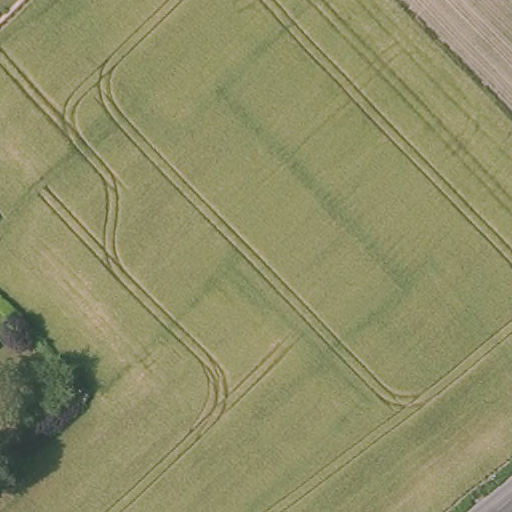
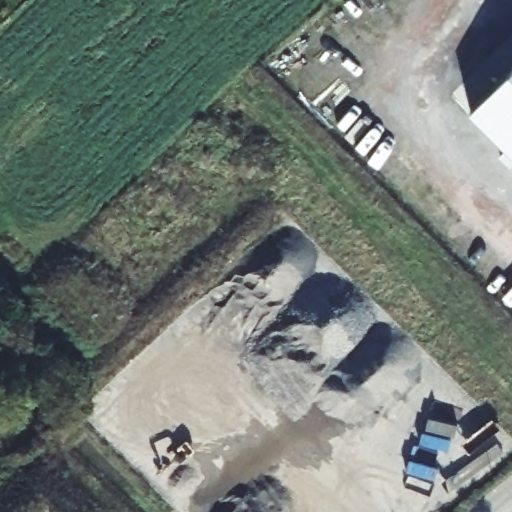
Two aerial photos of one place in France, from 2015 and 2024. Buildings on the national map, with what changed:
new [(512,79),(512,171),(467,126),(512,79)]

